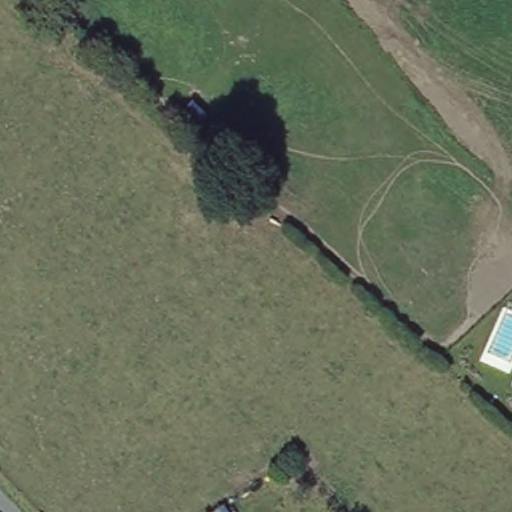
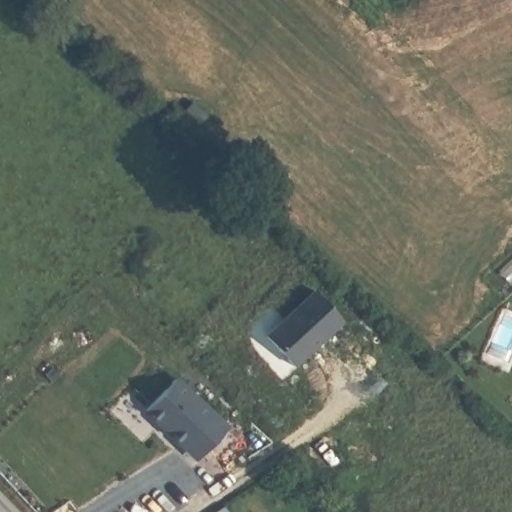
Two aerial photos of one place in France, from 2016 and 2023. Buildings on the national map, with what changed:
new [(296,367),(266,334),(315,290),(345,322),(296,367)]
new [(177,377),(226,427),(194,464),(145,413),(177,377)]
unchanged [(212,496),(224,512),(204,512),(199,505),(212,496)]

